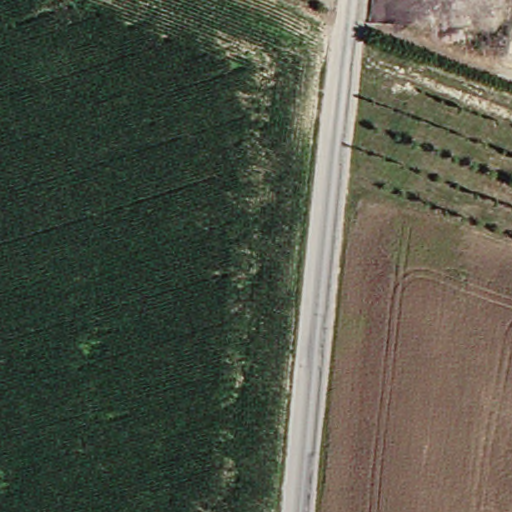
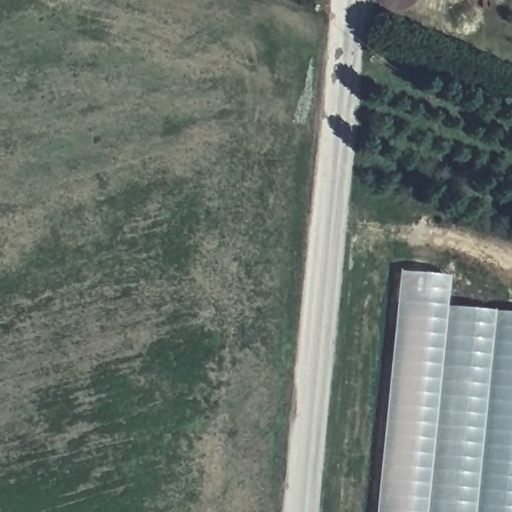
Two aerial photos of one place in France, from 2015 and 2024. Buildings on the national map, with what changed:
new [(372,512),(396,272),(447,277),(445,307),(512,314),(512,512),(372,512)]

